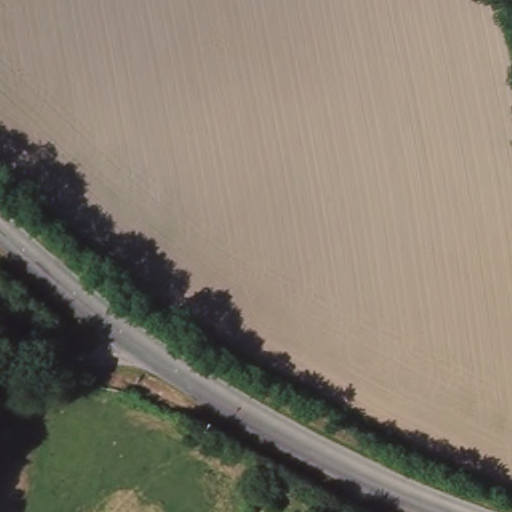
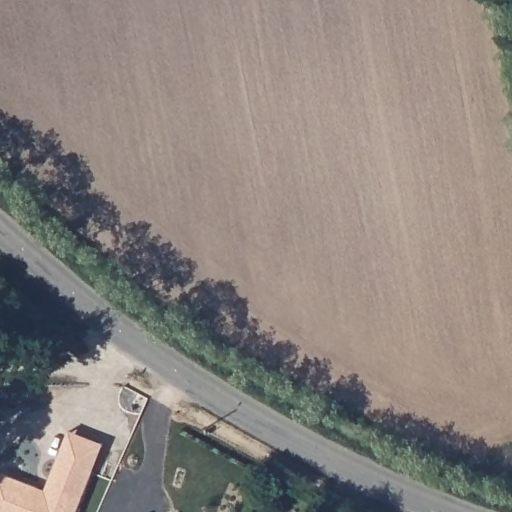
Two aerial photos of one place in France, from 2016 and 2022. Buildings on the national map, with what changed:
new [(63,432),(96,447),(84,476),(51,462),(63,432)]
new [(28,495),(36,498),(51,462),(84,476),(70,512),(0,512),(0,477),(30,490),(28,495)]

